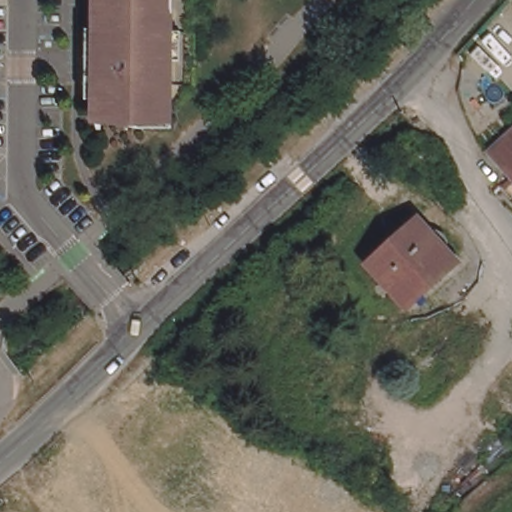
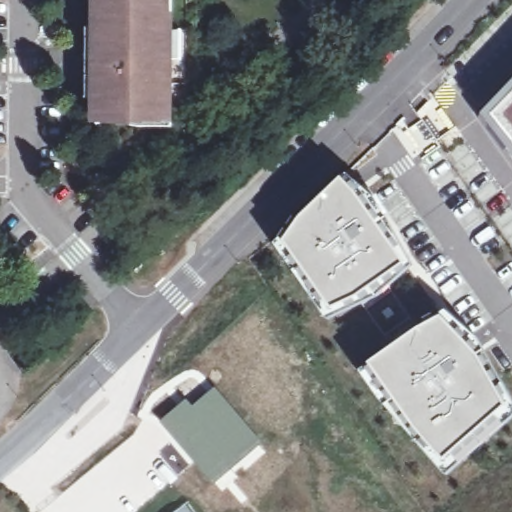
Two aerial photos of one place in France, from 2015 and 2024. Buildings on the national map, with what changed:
unchanged [(171,11),(170,86),(161,86),(161,113),(140,113),(133,119),(92,118),(92,91),(92,81),(99,81),(99,56),(88,56),(88,54),(88,29),(88,28),(99,28),(99,0),(161,0),(161,11),(171,11)]
new [(512,135),(495,114),(512,97),(512,135)]
demolished [(512,175),(490,151),(512,132),(512,175)]
new [(300,217),(342,178),(357,196),(405,264),(360,296),(333,307),(285,241),(300,217)]
demolished [(416,218),(458,264),(412,306),(369,260),(416,218)]
new [(442,315),(480,355),(505,403),(445,460),(415,429),(370,364),(442,315)]
new [(186,396),(192,403),(214,384),(263,441),(212,485),(158,420),(186,396)]
new [(187,502),(194,512),(173,512),(187,502)]

